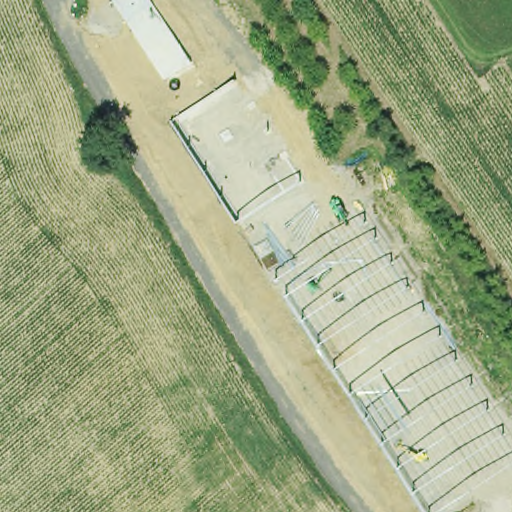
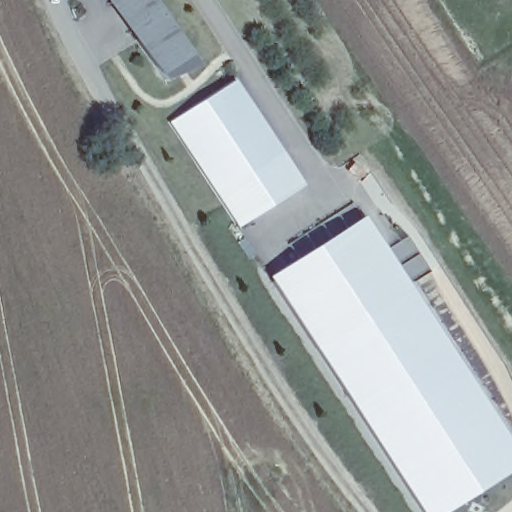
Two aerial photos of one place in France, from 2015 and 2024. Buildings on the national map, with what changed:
unchanged [(108,2),(112,0),(150,0),(191,62),(164,80),(163,78),(110,4),(108,2)]
new [(235,80),(300,181),(235,223),(170,121),(235,80)]
new [(512,470),(447,512),(423,512),(271,276),(362,216),(512,447),(512,470)]

